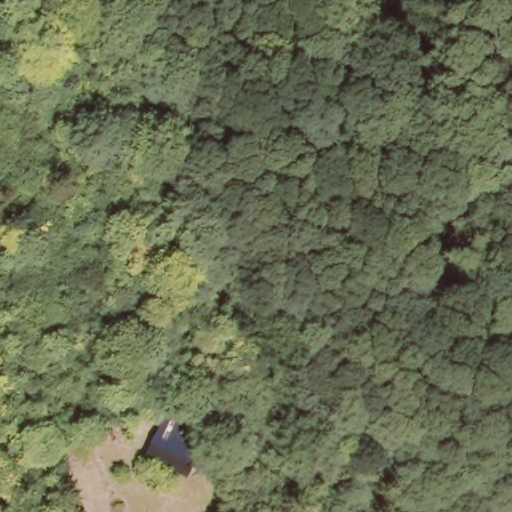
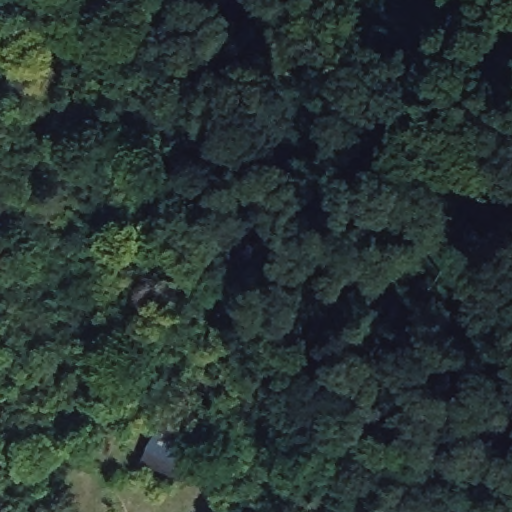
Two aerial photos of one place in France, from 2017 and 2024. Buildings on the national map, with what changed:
unchanged [(161,418),(201,436),(182,472),(142,454),(161,418)]

